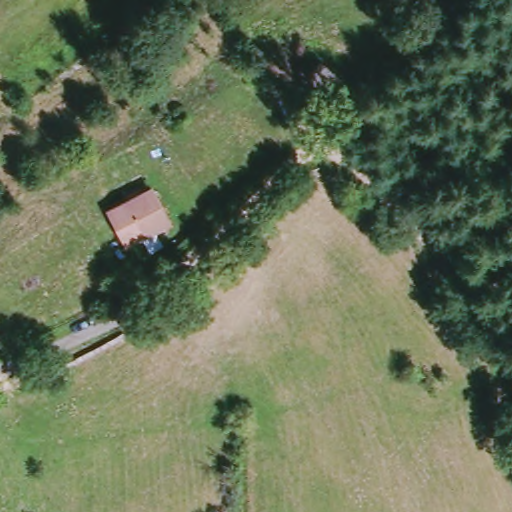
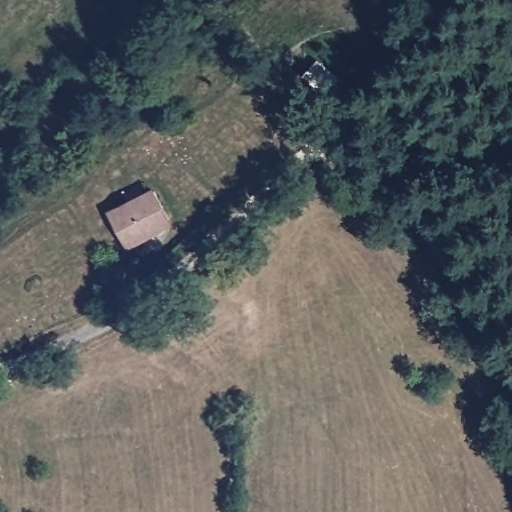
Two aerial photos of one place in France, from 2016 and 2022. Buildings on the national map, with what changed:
unchanged [(115,215),(154,195),(169,226),(132,245),(115,215)]

